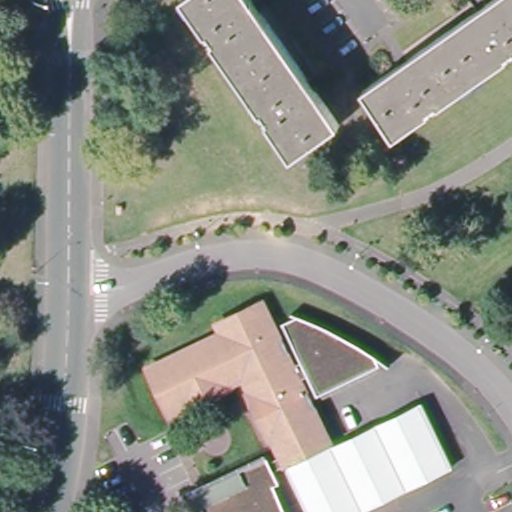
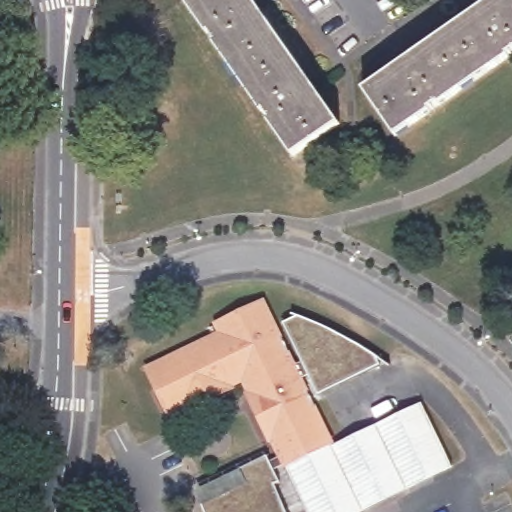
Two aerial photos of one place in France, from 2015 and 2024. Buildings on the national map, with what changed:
unchanged [(336,126),(293,157),(184,0),(249,0),(336,126)]
unchanged [(367,92),(498,0),(512,0),(512,52),(396,134),(367,92)]
unchanged [(289,348),(290,355),(302,381),(306,385),(317,408),(317,412),(330,439),(332,445),(423,403),(452,466),(354,512),(305,512),(283,465),(285,464),(284,462),(273,467),(280,480),(275,482),(288,512),(205,512),(200,501),(244,481),(237,467),(266,454),(269,460),(280,454),(270,432),(268,432),(265,423),(258,418),(253,408),(252,397),(242,375),(230,381),(231,385),(217,391),(214,395),(210,397),(205,399),(200,399),(186,406),(184,403),(170,410),(150,365),(222,331),(217,322),(252,305),(264,300),(267,307),(279,332),(289,348)]
unchanged [(329,328),(358,344),(380,359),(381,367),(320,396),(285,323),(300,315),(329,328)]

